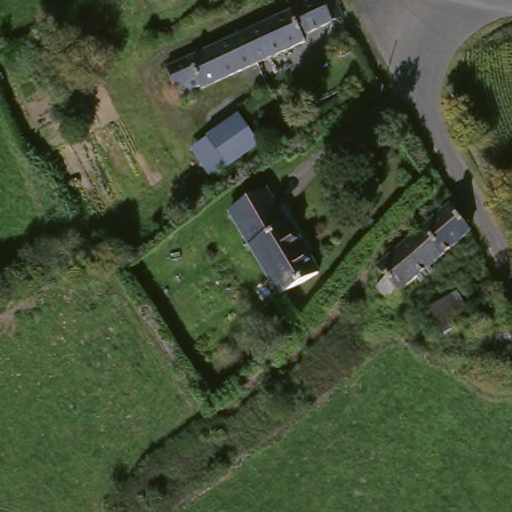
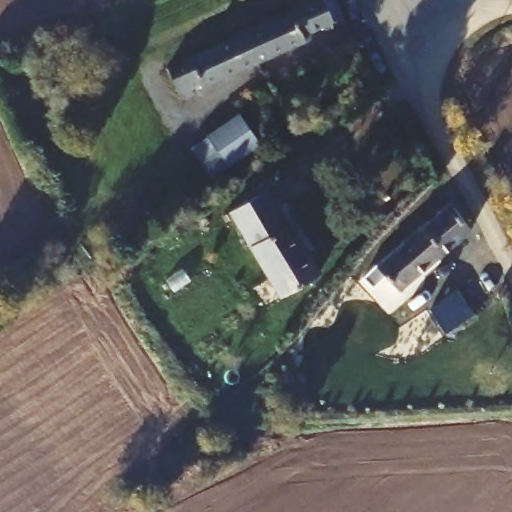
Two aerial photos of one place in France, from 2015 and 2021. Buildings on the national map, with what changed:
unchanged [(239,32),(313,0),(344,0),(349,12),(311,27),(313,35),(210,81),(205,70),(195,74),(201,88),(195,91),(186,96),(177,77),(170,61),(239,32)]
unchanged [(260,143),(229,161),(207,171),(194,153),(211,138),(245,116),(260,143)]
unchanged [(280,193),(291,219),(295,217),(318,266),(278,285),(245,215),(242,211),(280,193)]
unchanged [(480,233),(401,287),(397,282),(386,288),(380,279),(390,273),(382,262),(461,205),(480,233)]
unchanged [(469,293),(479,321),(447,333),(436,306),(469,293)]

